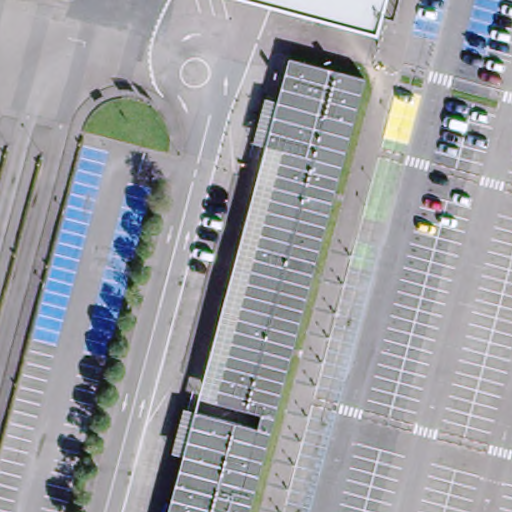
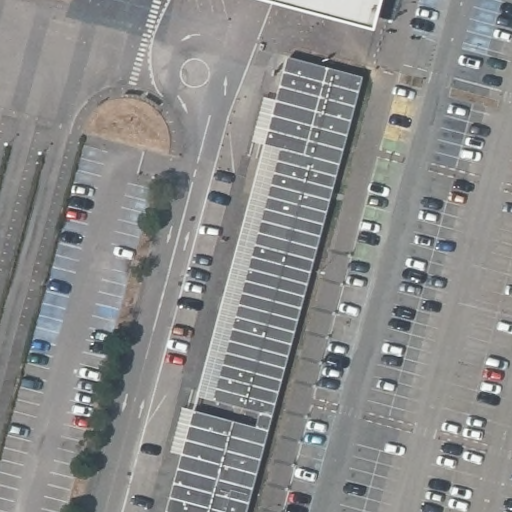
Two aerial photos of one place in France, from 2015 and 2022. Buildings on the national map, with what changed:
unchanged [(289,0),(384,0),(377,23),(289,0)]
unchanged [(276,137),(264,134),(283,61),(358,81),(268,418),(205,401),(276,137)]
unchanged [(243,512),(163,512),(190,412),(265,432),(243,512)]

